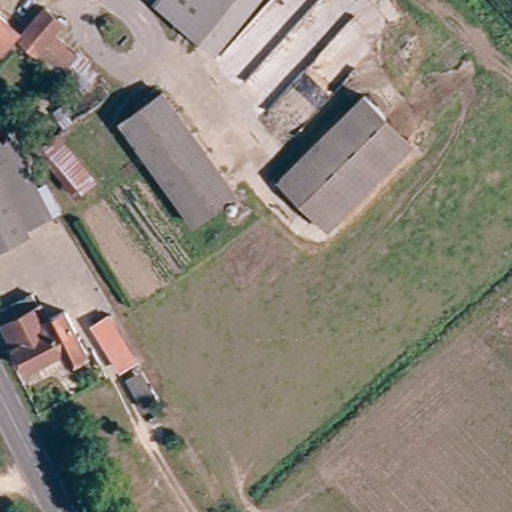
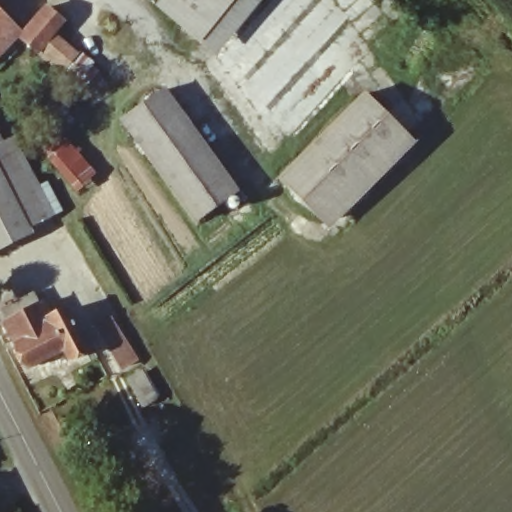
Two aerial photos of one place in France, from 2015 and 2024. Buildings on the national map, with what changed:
unchanged [(215,39),(202,28),(170,0),(251,0),(215,39)]
unchanged [(41,5),(60,23),(50,34),(70,55),(55,70),(26,41),(21,46),(12,37),(41,5)]
unchanged [(8,37),(0,42),(0,23),(8,37)]
unchanged [(123,116),(171,89),(231,196),(183,224),(123,116)]
unchanged [(289,184),(369,96),(392,119),(312,207),(289,184)]
unchanged [(392,119),(411,135),(330,224),(312,207),(392,119)]
unchanged [(36,139),(61,129),(114,195),(97,210),(36,139)]
unchanged [(0,170),(0,166),(20,156),(54,218),(33,230),(0,170)]
unchanged [(33,230),(0,247),(0,170),(33,230)]
unchanged [(31,365),(2,308),(42,288),(55,311),(67,305),(91,350),(71,360),(65,350),(31,365)]
unchanged [(113,320),(136,360),(121,368),(99,328),(113,320)]

